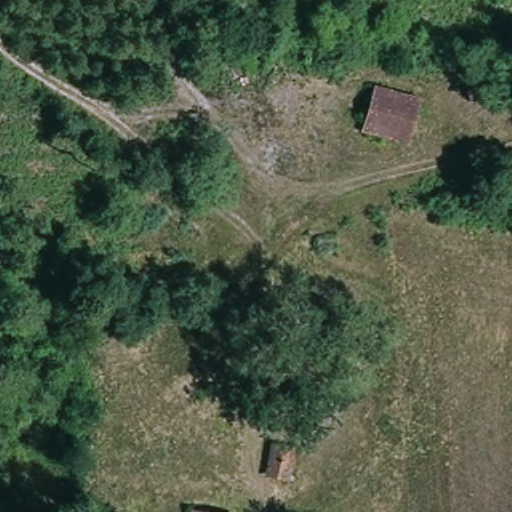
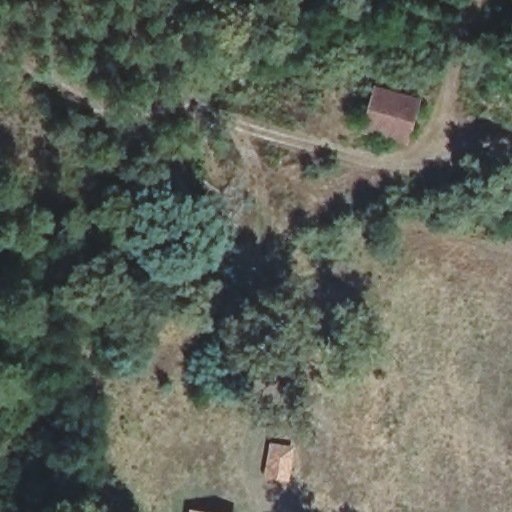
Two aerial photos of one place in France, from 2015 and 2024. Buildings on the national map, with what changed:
unchanged [(402,145),(359,132),(372,91),(411,104),(402,145)]

